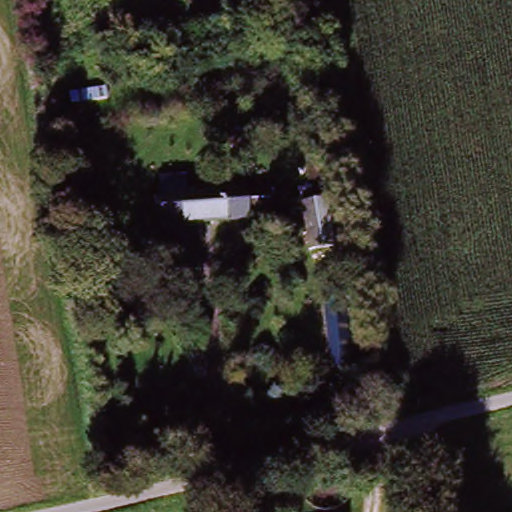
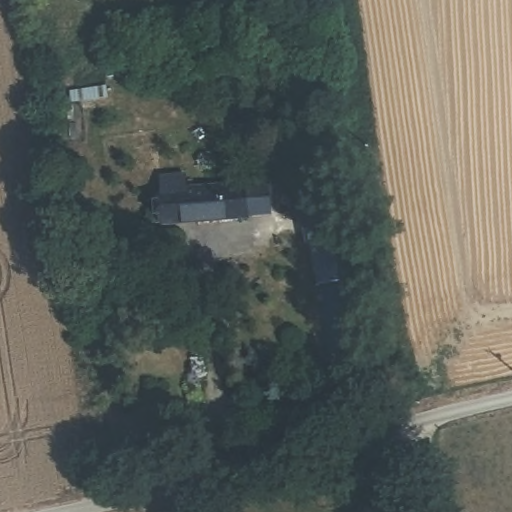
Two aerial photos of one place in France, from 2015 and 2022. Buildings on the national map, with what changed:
unchanged [(271,190),(273,222),(166,230),(162,184),(187,182),(188,196),(271,190)]
unchanged [(304,255),(302,195),(326,195),(328,254),(304,255)]
unchanged [(351,289),(354,381),(329,381),(326,290),(351,289)]

